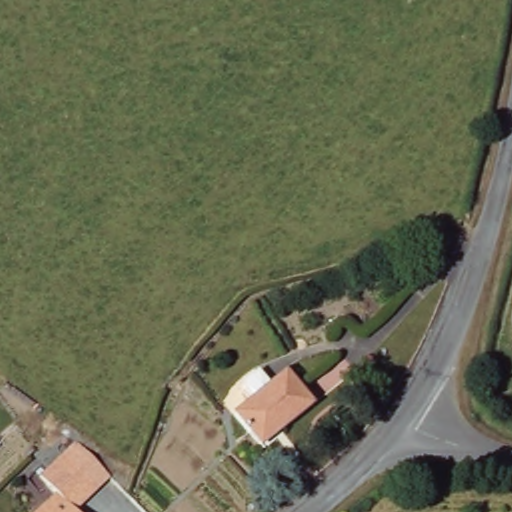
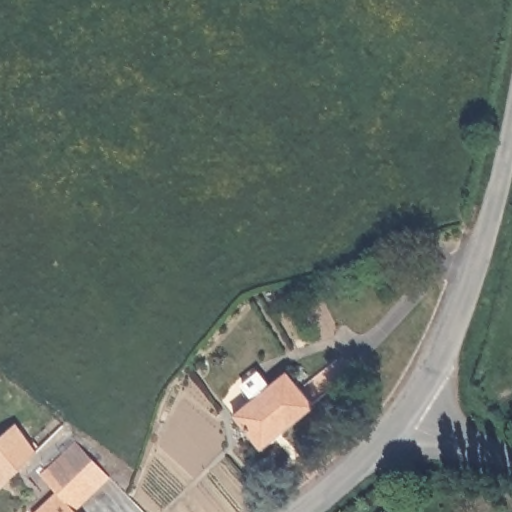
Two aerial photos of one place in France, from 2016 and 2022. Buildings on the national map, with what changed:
unchanged [(294,371),(318,401),(267,446),(241,417),(294,371)]
new [(0,485),(0,436),(16,422),(36,450),(0,485)]
unchanged [(100,492),(79,512),(41,512),(60,495),(41,476),(62,455),(100,492)]

